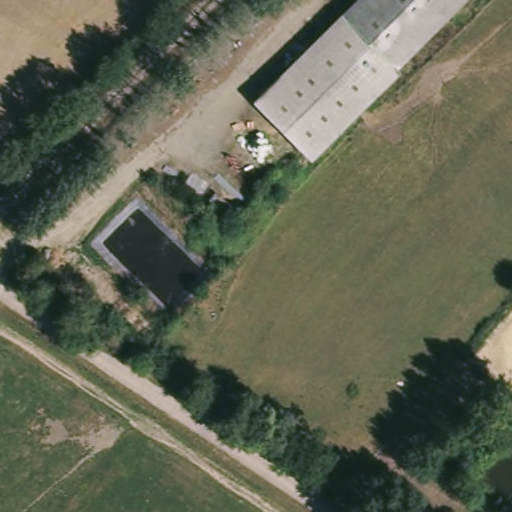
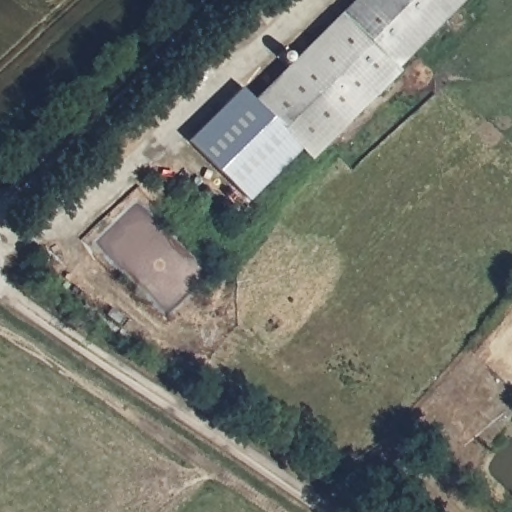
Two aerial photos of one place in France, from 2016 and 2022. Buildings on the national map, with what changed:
unchanged [(354,0),(462,0),(396,67),(400,71),(335,136),(277,78),(341,13),(354,0)]
unchanged [(335,136),(314,157),(256,99),(277,78),(335,136)]
new [(242,87),(255,100),(256,99),(314,157),(310,161),(301,150),(250,200),(188,140),(242,87)]

